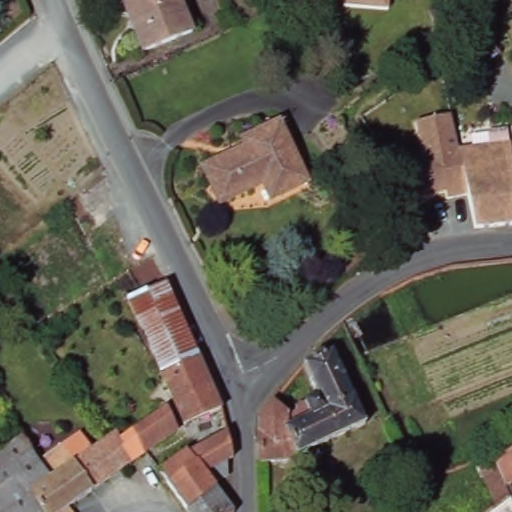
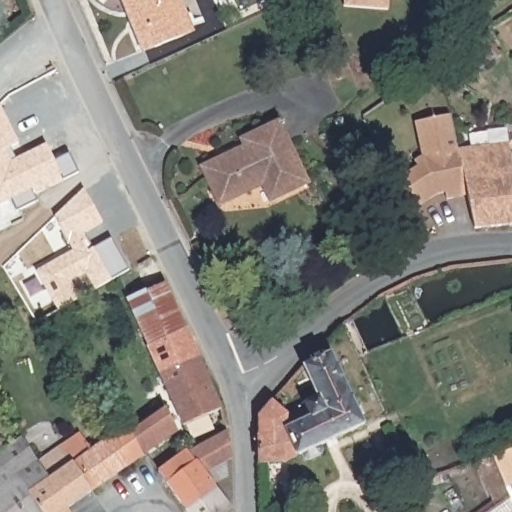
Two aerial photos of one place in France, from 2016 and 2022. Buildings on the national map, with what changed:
unchanged [(195,32),(144,52),(123,0),(180,0),(195,32)]
unchanged [(486,34),(462,50),(446,61),(440,53),(450,46),(480,25),(486,34)]
new [(6,146),(12,158),(47,141),(55,158),(71,150),(80,169),(36,191),(39,198),(17,208),(12,196),(0,202),(0,101),(19,140),(6,146)]
unchanged [(419,203),(418,202),(403,175),(422,164),(418,159),(426,155),(418,121),(453,113),(461,148),(471,193),(419,203)]
unchanged [(213,188),(204,169),(230,157),(232,160),(248,152),(244,143),(280,126),(309,187),(273,204),(264,188),(229,205),(222,208),(213,188)]
unchanged [(479,226),(471,193),(461,148),(512,141),(512,223),(479,226)]
new [(85,239),(90,248),(114,235),(131,268),(60,307),(38,268),(76,247),(57,214),(86,186),(105,219),(84,231),(87,237),(85,239)]
new [(92,247),(90,248),(85,239),(87,237),(92,247)]
unchanged [(164,282),(190,341),(196,355),(159,371),(152,358),(145,340),(134,316),(126,298),(164,282)]
unchanged [(352,307),(368,345),(358,348),(343,314),(352,307)]
unchanged [(320,349),(322,355),(329,351),(352,396),(364,424),(319,445),(321,451),(318,453),(307,458),(302,457),(301,453),(285,460),(258,461),(257,414),(271,398),(285,409),(285,414),(293,409),(293,404),(314,394),(302,363),(310,360),(308,355),(320,349)]
unchanged [(212,393),(220,409),(182,423),(159,371),(196,355),(212,393)]
unchanged [(160,399),(175,426),(172,427),(174,431),(165,437),(142,452),(130,431),(118,438),(115,432),(114,429),(156,404),(155,401),(160,399)]
unchanged [(226,431),(187,450),(185,448),(176,455),(165,437),(174,431),(172,427),(175,426),(182,423),(220,409),(226,431)]
unchanged [(115,432),(118,438),(130,431),(142,452),(122,467),(120,469),(92,488),(82,474),(72,460),(86,451),(91,447),(102,440),(115,432)]
unchanged [(232,457),(226,460),(226,475),(212,482),(210,478),(187,450),(226,431),(232,457)]
unchanged [(50,477),(27,491),(42,512),(0,512),(0,449),(20,435),(37,460),(50,477)]
unchanged [(50,477),(37,460),(60,444),(66,453),(72,460),(82,474),(92,488),(64,508),(66,512),(42,512),(27,491),(50,477)]
unchanged [(166,462),(176,455),(185,448),(187,450),(210,478),(212,482),(234,510),(232,512),(190,512),(157,469),(166,462)]
unchanged [(510,511),(496,479),(489,462),(510,453),(511,456),(512,456),(512,510),(510,511)]
unchanged [(401,489),(410,512),(391,512),(385,496),(401,489)]

